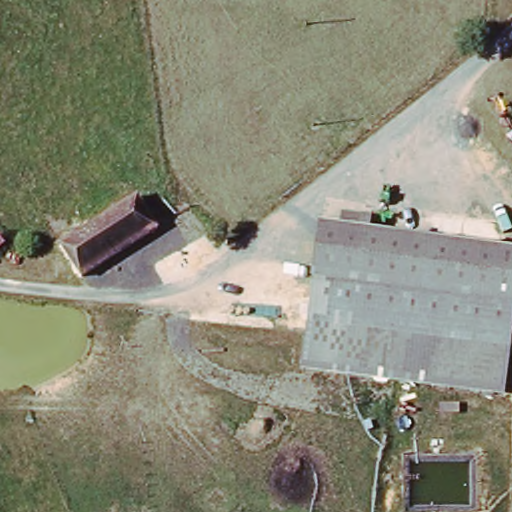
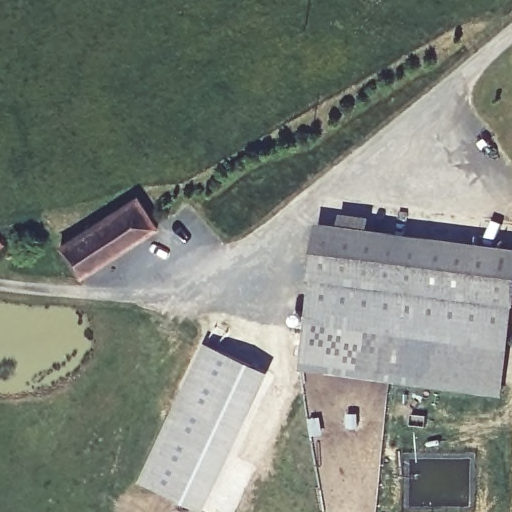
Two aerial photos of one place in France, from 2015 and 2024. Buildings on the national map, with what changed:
unchanged [(55,250),(137,197),(157,227),(78,283),(55,250)]
unchanged [(299,367),(312,279),(320,223),(339,225),(342,213),(369,215),(367,228),(512,246),(512,317),(502,391),(299,367)]
unchanged [(0,239),(0,235),(2,237),(0,239)]
demolished [(0,266),(13,254),(27,263),(2,286),(0,283),(0,266)]
new [(207,342),(270,372),(207,510),(143,482),(207,342)]

